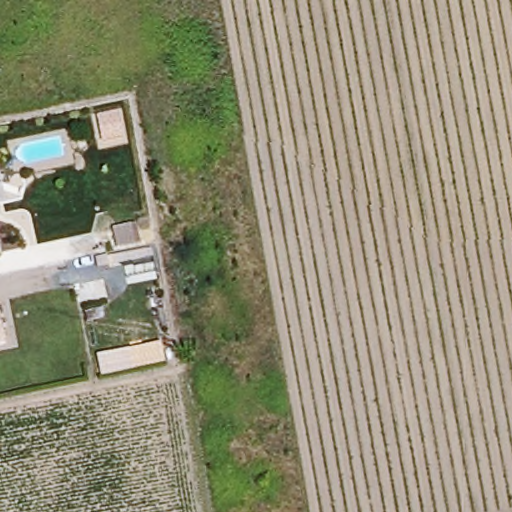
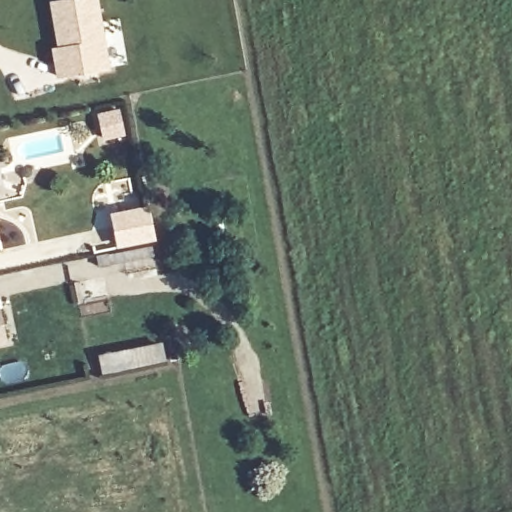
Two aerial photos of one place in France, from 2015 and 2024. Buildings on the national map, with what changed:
new [(55,78),(49,47),(55,46),(47,0),(98,0),(109,69),(55,78)]
new [(119,108),(125,136),(101,140),(96,112),(119,108)]
new [(141,207),(147,237),(118,244),(111,214),(141,207)]
unchanged [(0,346),(0,303),(9,345),(0,346)]
new [(102,374),(98,354),(161,341),(165,361),(102,374)]

